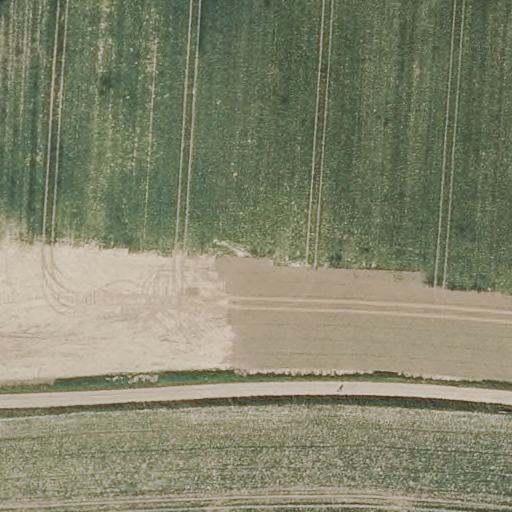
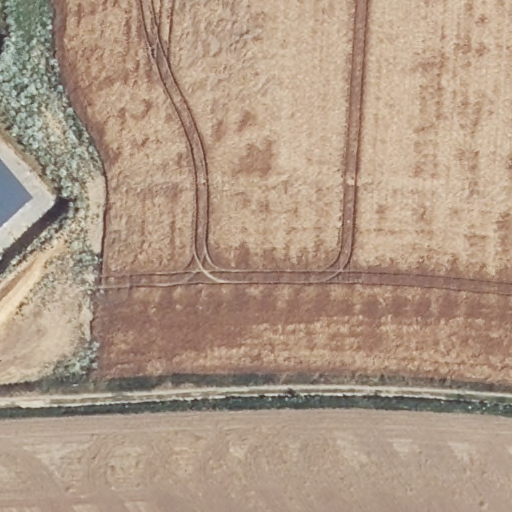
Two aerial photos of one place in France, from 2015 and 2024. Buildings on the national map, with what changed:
new [(30,201),(0,230),(0,169),(30,201)]

